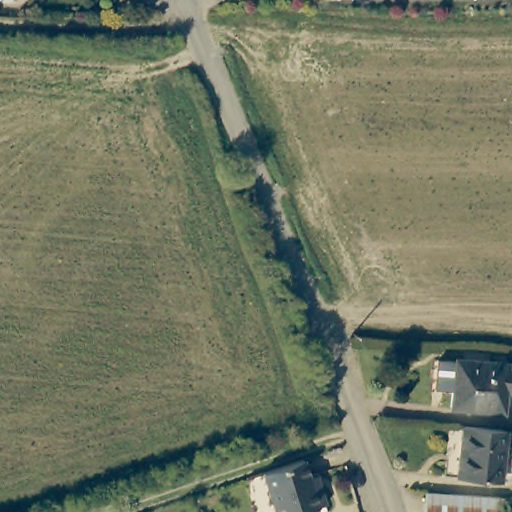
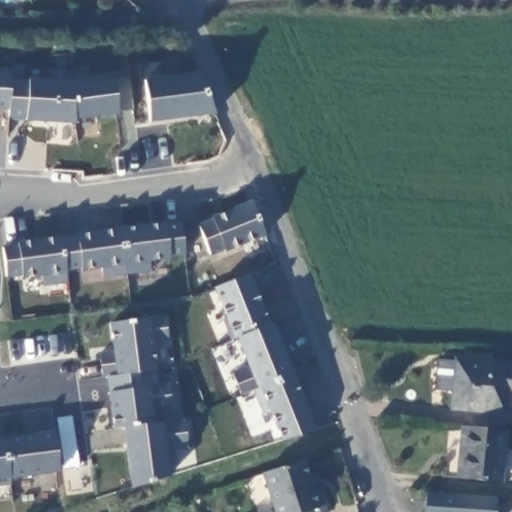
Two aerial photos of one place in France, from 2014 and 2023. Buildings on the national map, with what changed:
new [(156,68),(158,81),(195,76),(211,116),(147,125),(140,70),(156,68)]
new [(10,74),(9,111),(0,110),(0,73),(10,74)]
new [(9,111),(10,82),(27,84),(28,82),(49,84),(50,73),(70,74),(69,85),(70,85),(74,121),(75,125),(25,122),(25,120),(8,119),(9,111)]
new [(114,80),(127,79),(132,113),(117,115),(117,116),(74,121),(70,85),(114,80)]
new [(209,221),(209,220),(248,204),(261,235),(222,252),(221,250),(207,256),(195,227),(209,221)]
new [(164,225),(165,227),(180,225),(184,255),(169,257),(169,259),(148,261),(150,272),(126,275),(120,231),(164,225)]
new [(76,239),(76,236),(120,231),(126,275),(102,278),(101,268),(81,271),(81,268),(65,270),(61,241),(76,239)]
new [(17,247),(17,245),(61,239),(61,241),(65,270),(67,283),(44,286),(42,276),(21,279),(21,276),(6,279),(2,249),(17,247)]
new [(247,275),(267,326),(231,341),(224,322),(227,320),(214,289),(247,275)]
new [(171,408),(151,410),(154,425),(124,429),(114,430),(107,378),(102,379),(99,357),(115,355),(110,326),(165,320),(167,343),(151,346),(155,372),(157,388),(169,386),(171,408)]
new [(270,325),(290,376),(240,396),(231,375),(248,367),(236,339),(270,325)]
unchanged [(512,408),(460,404),(461,386),(443,385),(446,356),(465,358),(465,354),(512,358),(512,408)]
new [(290,376),(314,433),(282,442),(269,411),(262,414),(253,391),(290,376)]
new [(154,425),(184,420),(187,449),(165,452),(169,479),(132,490),(124,429),(154,425)]
unchanged [(500,480),(457,477),(462,427),(504,430),(506,431),(500,480)]
new [(55,434),(60,472),(10,478),(5,440),(55,434)]
new [(5,440),(10,478),(11,485),(0,486),(0,441),(5,440)]
unchanged [(307,487),(315,485),(322,505),(300,512),(269,512),(255,473),(297,459),(304,477),(307,487)]

